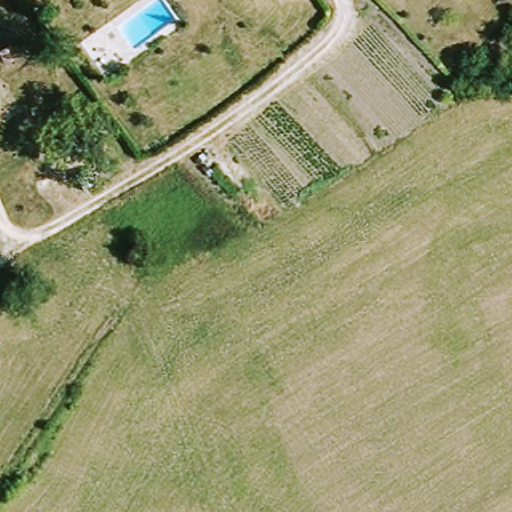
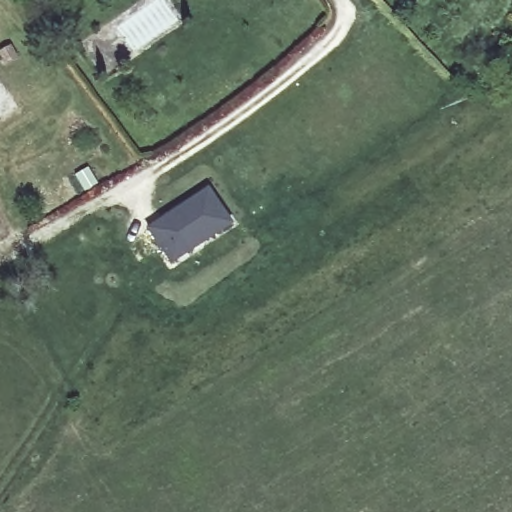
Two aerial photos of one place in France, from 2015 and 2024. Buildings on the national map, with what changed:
unchanged [(19,56),(12,45),(24,39),(30,50),(19,56)]
new [(147,230),(209,188),(233,225),(172,267),(147,230)]

